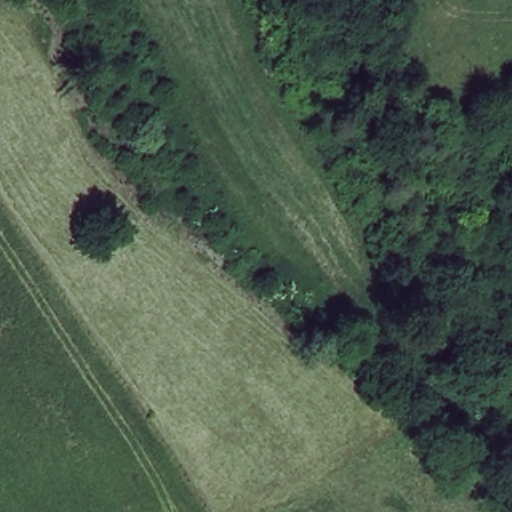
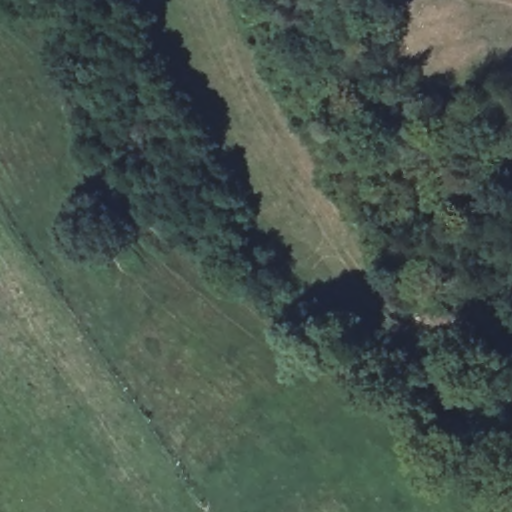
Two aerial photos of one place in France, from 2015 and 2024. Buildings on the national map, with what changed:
unchanged [(51,98),(42,81),(57,73),(65,93),(51,98)]

